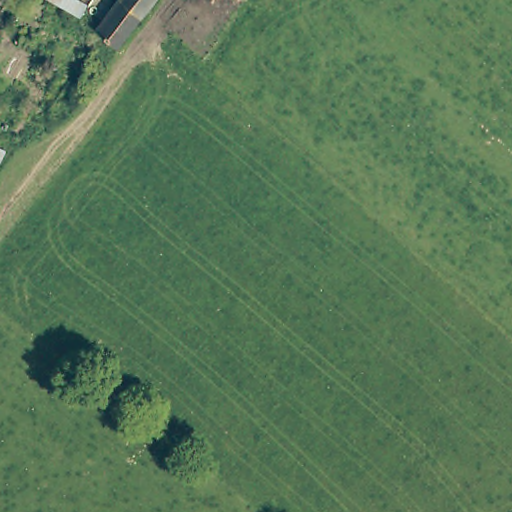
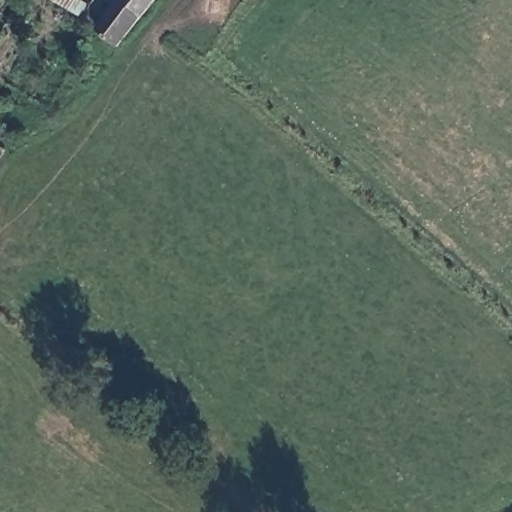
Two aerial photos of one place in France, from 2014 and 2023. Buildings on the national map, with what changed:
unchanged [(97,30),(118,3),(120,0),(154,0),(140,18),(118,46),(97,30)]

